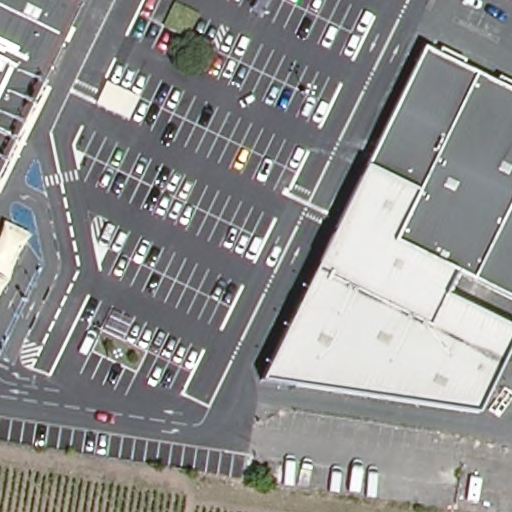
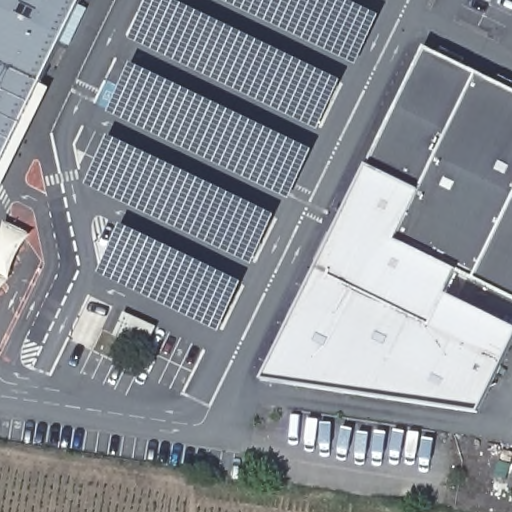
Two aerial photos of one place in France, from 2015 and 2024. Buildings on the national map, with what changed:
unchanged [(0,0),(80,0),(0,164),(0,0)]
new [(315,131),(231,93),(134,37),(131,41),(126,37),(147,0),(172,0),(245,35),(341,81),(315,131)]
new [(355,64),(270,26),(221,0),(344,0),(379,17),(355,64)]
unchanged [(396,239),(418,187),(367,162),(421,44),(512,88),(512,294),(459,268),(396,239)]
new [(215,105),(311,151),(289,198),(135,127),(105,111),(134,59),(215,105)]
new [(109,137),(275,217),(249,265),(202,239),(200,242),(85,177),(109,137)]
unchanged [(367,162),(418,187),(396,239),(459,268),(448,293),(512,322),(512,340),(479,409),(262,377),(367,162)]
new [(240,287),(214,334),(96,270),(123,222),(240,287)]
new [(123,312),(155,327),(145,350),(113,335),(123,312)]

